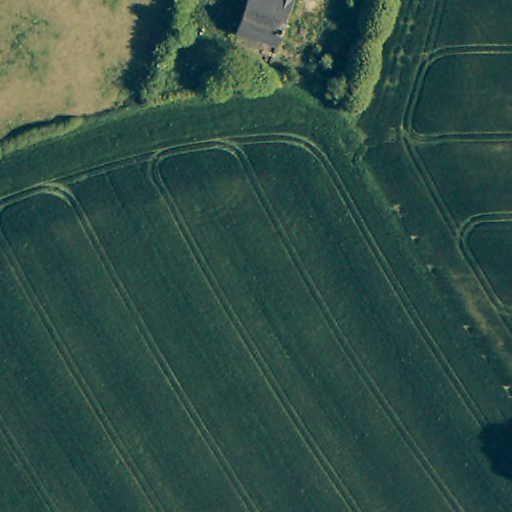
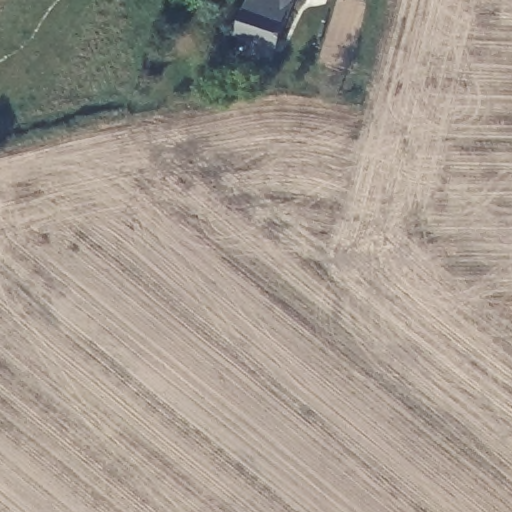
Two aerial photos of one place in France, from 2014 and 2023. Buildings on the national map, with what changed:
unchanged [(249,0),(290,0),(278,43),(241,34),(249,0)]

